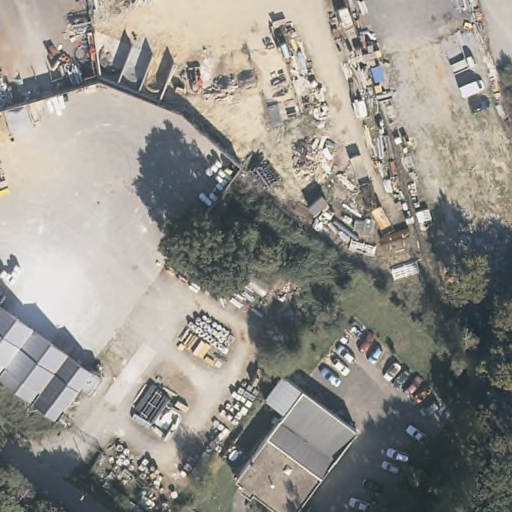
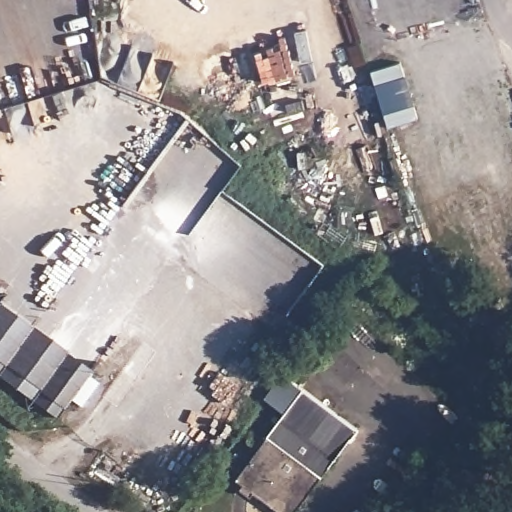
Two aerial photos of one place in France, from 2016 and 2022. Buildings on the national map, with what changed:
new [(398,61),(416,119),(383,129),(366,71),(398,61)]
unchanged [(87,364),(52,413),(0,375),(0,301),(87,364)]
unchanged [(353,428),(291,512),(275,512),(231,480),(299,388),(353,428)]

